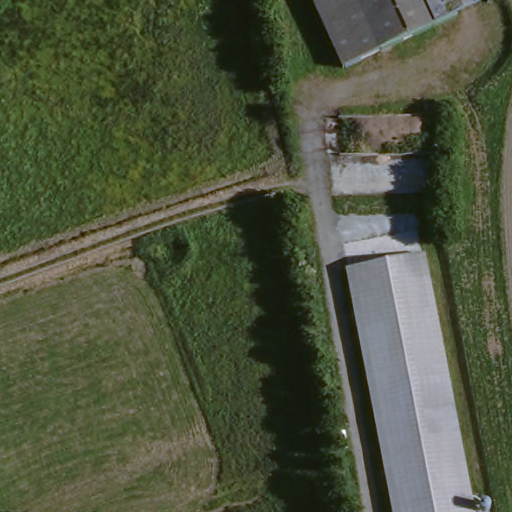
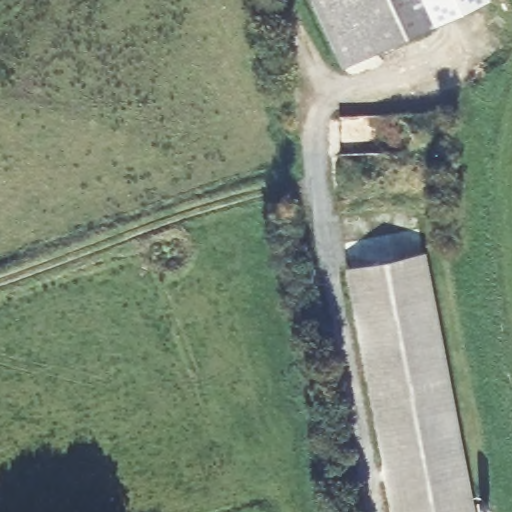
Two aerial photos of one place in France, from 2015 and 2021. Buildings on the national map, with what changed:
unchanged [(441,21),(349,61),(322,0),(431,0),(441,21)]
unchanged [(441,21),(431,0),(488,0),(441,21)]
unchanged [(481,512),(394,512),(350,262),(433,248),(481,512)]

